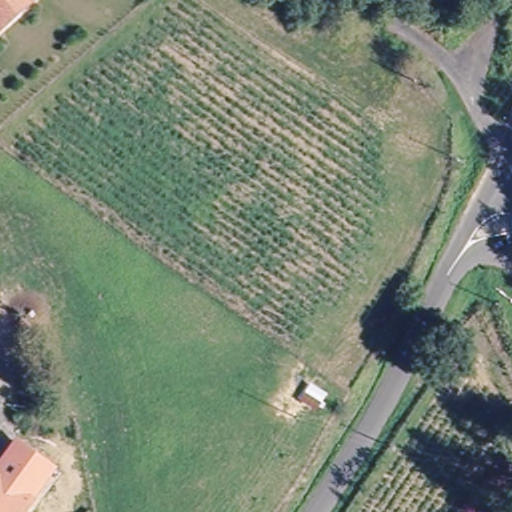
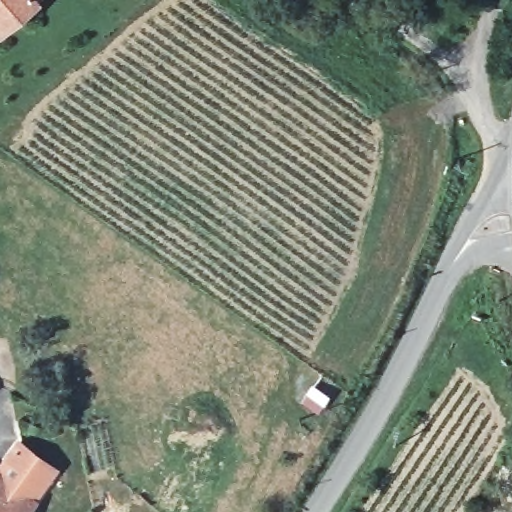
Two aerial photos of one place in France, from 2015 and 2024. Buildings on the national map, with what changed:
unchanged [(29,0),(0,25),(0,0),(29,0)]
unchanged [(18,438),(56,466),(31,498),(0,475),(0,462),(18,438)]
unchanged [(31,498),(21,512),(0,512),(0,475),(31,498)]

